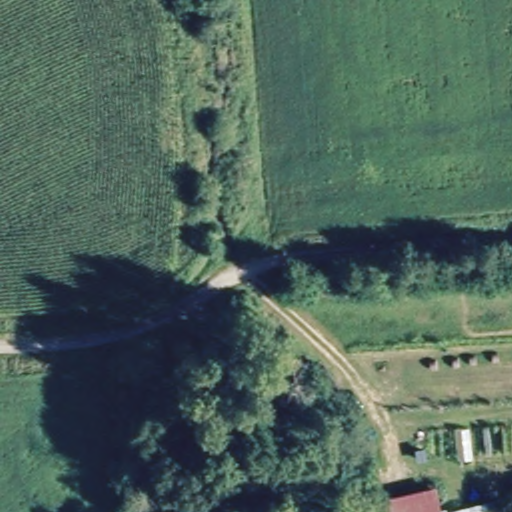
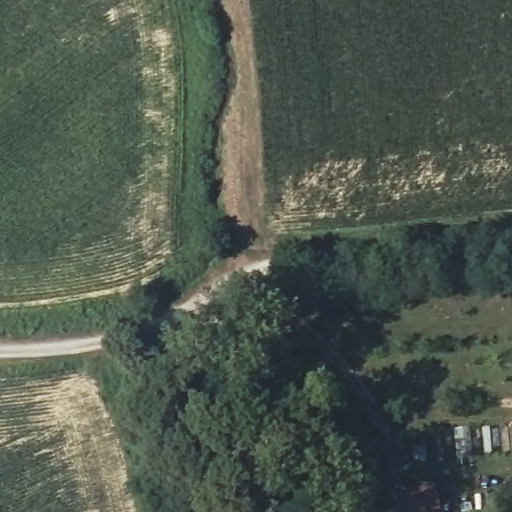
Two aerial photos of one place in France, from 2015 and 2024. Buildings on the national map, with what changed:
unchanged [(442,512),(378,512),(376,506),(435,490),(442,512)]

